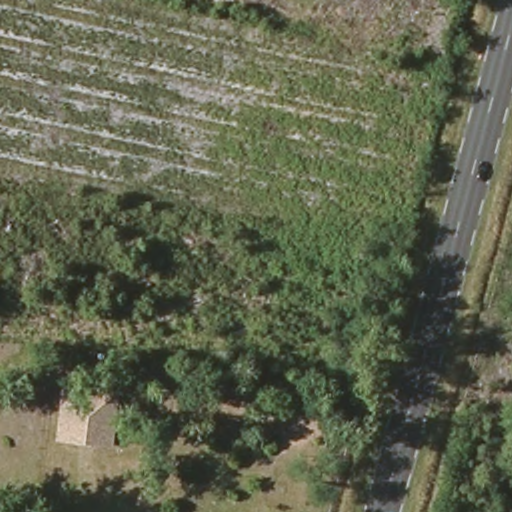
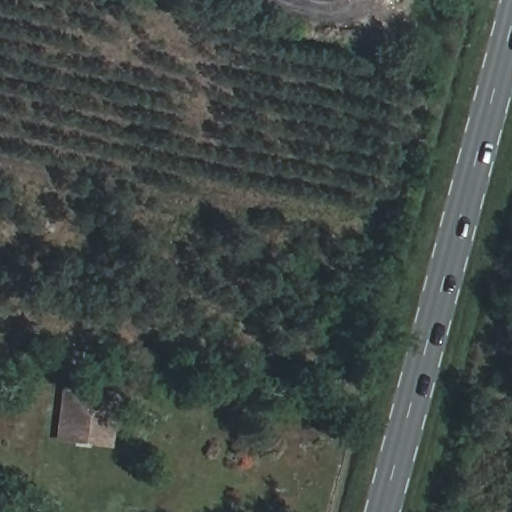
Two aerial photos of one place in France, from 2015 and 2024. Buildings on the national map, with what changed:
unchanged [(115,446),(65,441),(70,391),(120,396),(115,446)]

